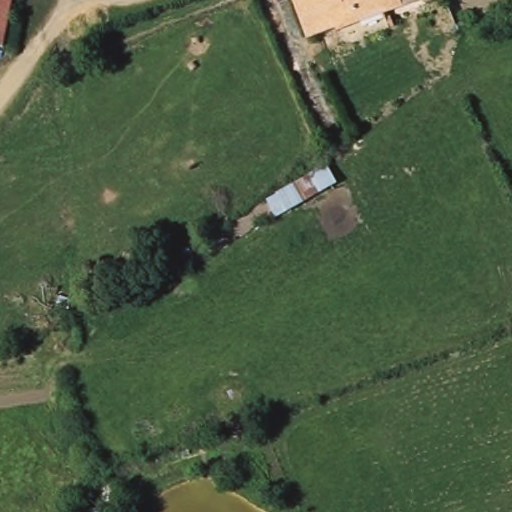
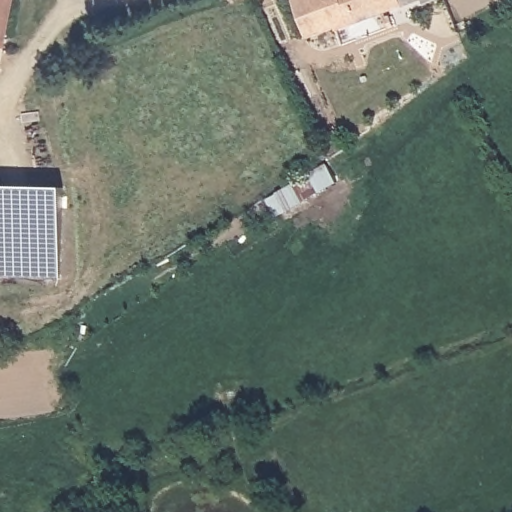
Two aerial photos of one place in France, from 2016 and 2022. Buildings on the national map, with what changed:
unchanged [(9,50),(5,50),(0,48),(0,0),(19,0),(14,24),(9,50)]
unchanged [(307,39),(292,0),(417,0),(307,39)]
new [(58,291),(0,286),(0,195),(66,201),(58,291)]

